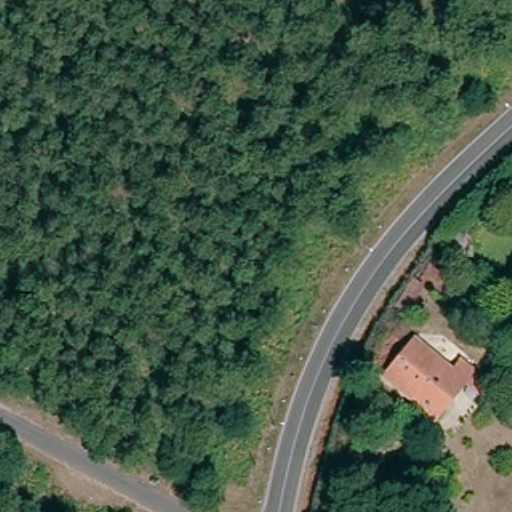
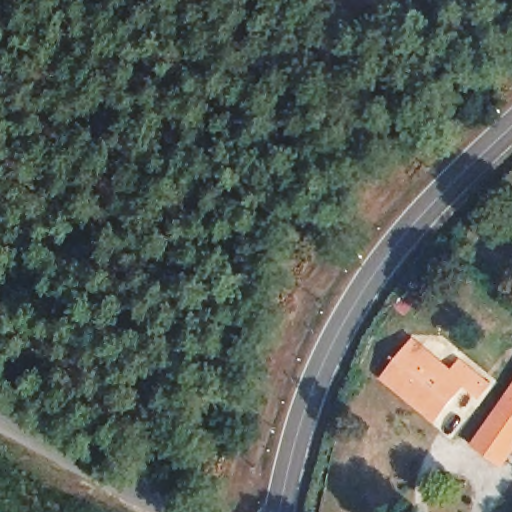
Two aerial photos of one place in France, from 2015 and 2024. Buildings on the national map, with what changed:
unchanged [(472,394),(461,385),(432,421),(382,379),(410,344),(447,374),(457,364),(470,374),(480,383),(472,394)]
new [(512,387),(512,455),(504,466),(472,444),(512,387)]

